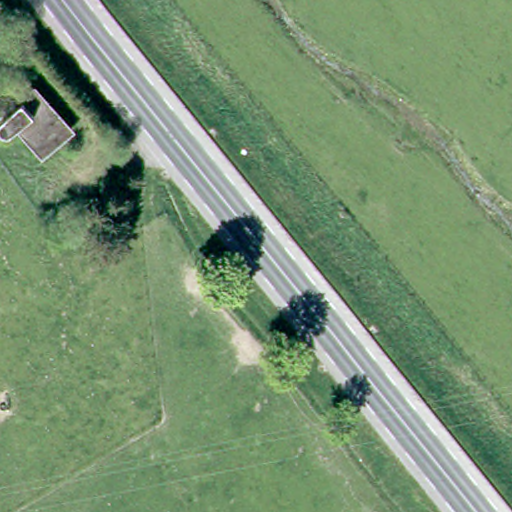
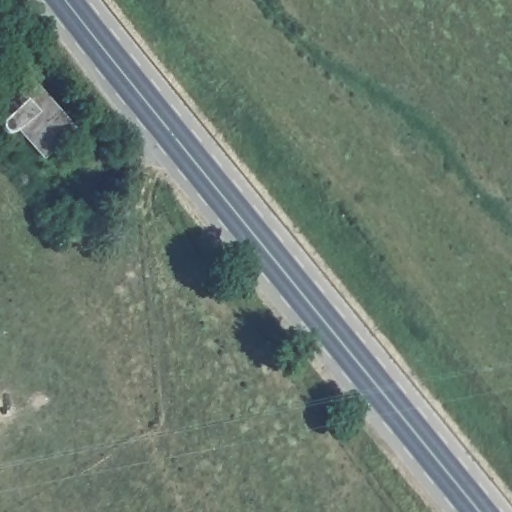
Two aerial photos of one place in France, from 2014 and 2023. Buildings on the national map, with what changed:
unchanged [(36,85),(75,131),(43,157),(31,144),(56,123),(29,91),(36,85)]
unchanged [(56,123),(31,144),(20,129),(11,135),(8,135),(5,134),(3,133),(2,131),(1,129),(1,126),(1,124),(3,122),(5,120),(2,115),(29,91),(56,123)]

